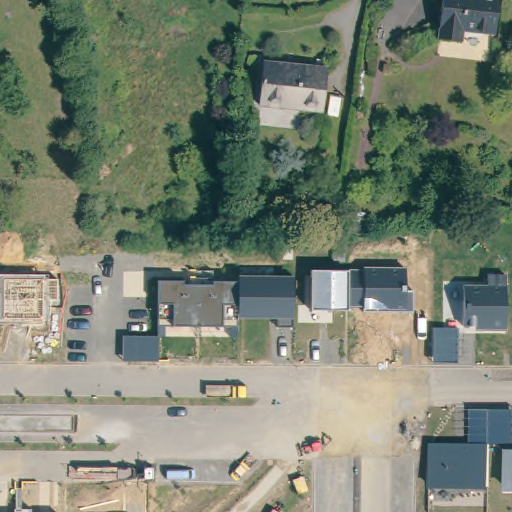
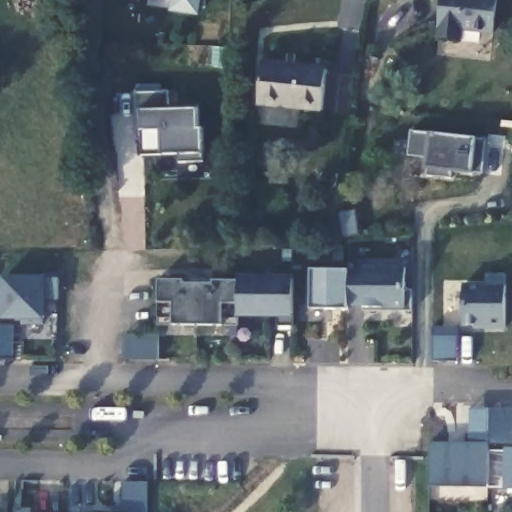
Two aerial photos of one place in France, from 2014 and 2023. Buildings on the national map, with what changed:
new [(197,16),(170,12),(171,0),(200,0),(197,16)]
unchanged [(442,40),(446,0),(502,0),(499,31),(471,27),(470,42),(442,40)]
unchanged [(259,101),(263,59),(327,64),(325,106),(259,101)]
new [(167,93),(168,109),(197,108),(197,129),(201,128),(202,152),(202,162),(179,162),(179,155),(162,155),(141,155),(141,138),(135,138),(135,94),(167,93)]
new [(413,132),(490,140),(487,175),(455,172),(454,180),(430,177),(431,160),(411,157),(413,132)]
unchanged [(347,270),(362,270),(362,266),(406,266),(405,291),(413,291),(413,312),(362,311),(362,307),(347,306),(347,311),(311,309),(310,270),(347,270)]
unchanged [(487,285),(487,274),(506,275),(506,330),(473,330),(473,325),(461,325),(462,285),(487,285)]
unchanged [(293,276),(292,317),(292,326),(277,326),(277,317),(240,318),(239,337),(231,337),(231,326),(225,326),(175,325),(157,324),(159,302),(160,282),(182,281),(182,285),(214,285),(214,281),(238,281),(238,276),(293,276)]
unchanged [(44,277),(59,277),(59,304),(45,304),(46,320),(2,321),(2,277),(44,277)]
new [(17,325),(16,336),(16,360),(0,360),(0,325),(17,325)]
unchanged [(457,328),(457,363),(432,362),(432,327),(457,328)]
unchanged [(160,336),(160,361),(124,361),(124,336),(160,336)]
unchanged [(469,408),(512,408),(512,444),(488,444),(488,487),(429,487),(431,443),(469,442),(469,408)]
unchanged [(512,490),(503,490),(506,449),(512,449),(512,490)]
unchanged [(148,512),(123,512),(123,483),(149,484),(148,512)]
unchanged [(32,507),(33,512),(18,512),(18,507),(32,507)]

